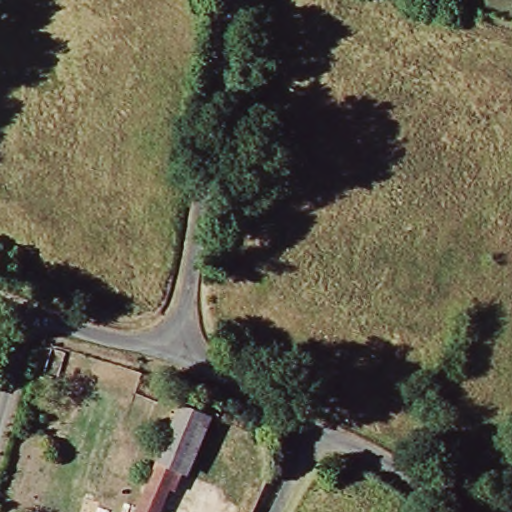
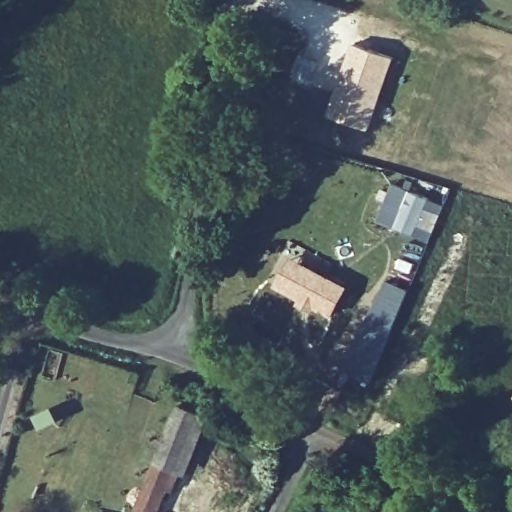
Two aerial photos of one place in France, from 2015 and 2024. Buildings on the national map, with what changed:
new [(351,43),(394,57),(368,132),(326,117),(351,43)]
new [(430,243),(378,220),(394,183),(445,205),(430,243)]
new [(332,318),(285,290),(301,259),(350,287),(332,318)]
new [(390,336),(365,324),(388,280),(407,289),(390,336)]
unchanged [(178,404),(196,413),(156,512),(135,512),(178,404)]

